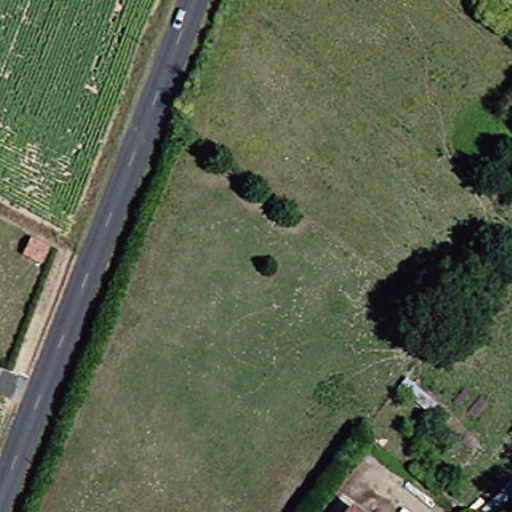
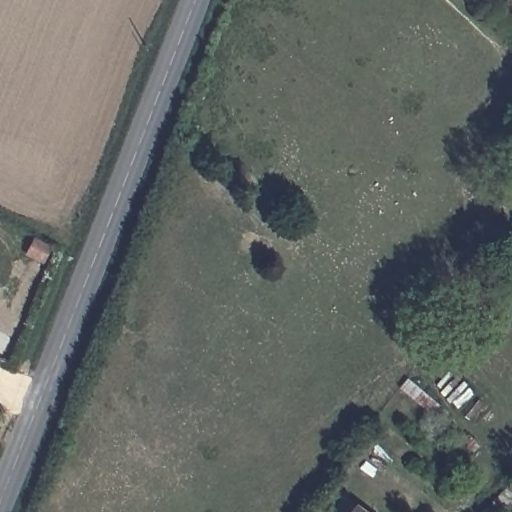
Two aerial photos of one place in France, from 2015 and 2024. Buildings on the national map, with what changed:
unchanged [(24,258),(31,245),(44,254),(37,267),(24,258)]
unchanged [(345,510),(347,512),(344,512),(345,510)]

